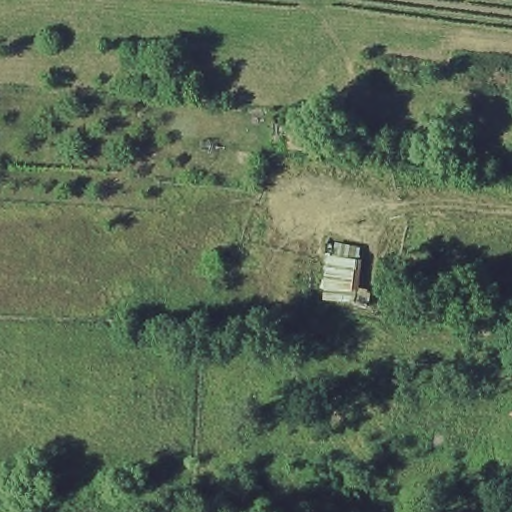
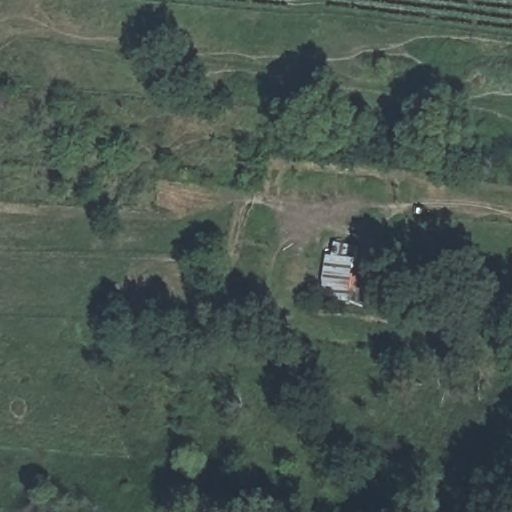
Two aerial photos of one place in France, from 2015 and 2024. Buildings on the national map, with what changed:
unchanged [(361,306),(323,301),(331,240),(365,245),(361,306)]

